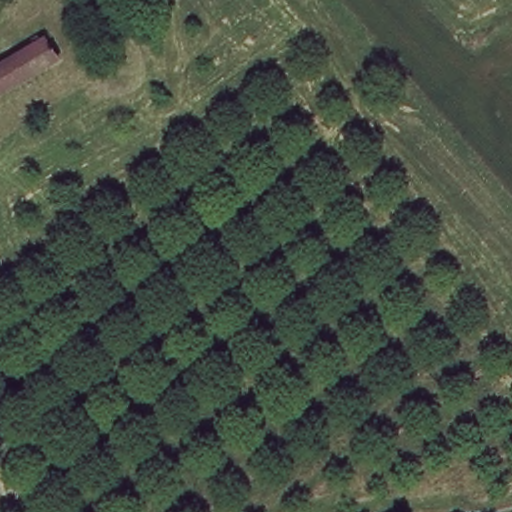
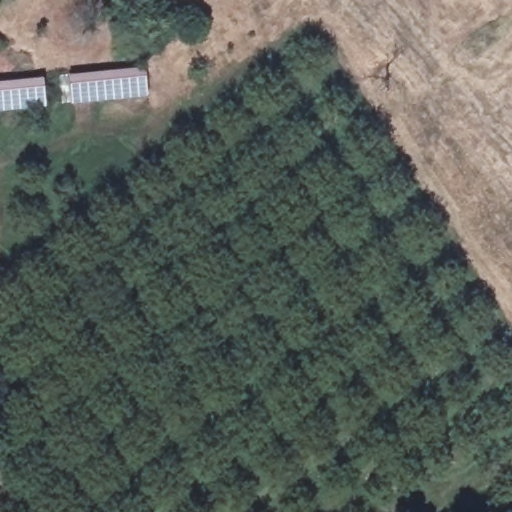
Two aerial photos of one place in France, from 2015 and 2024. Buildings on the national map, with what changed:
new [(145,65),(147,91),(134,93),(72,99),(70,73),(133,66),(145,65)]
unchanged [(53,83),(53,105),(0,109),(0,87),(53,83)]

